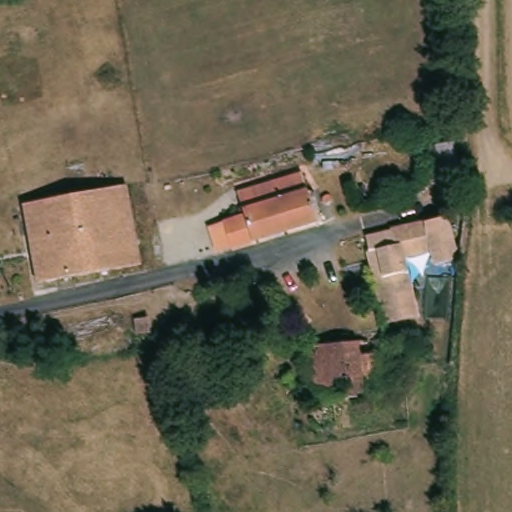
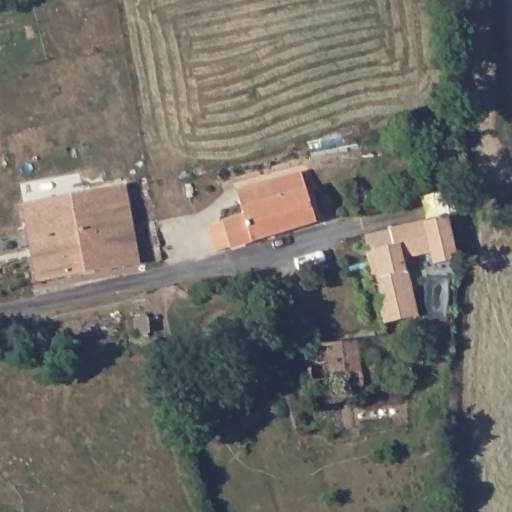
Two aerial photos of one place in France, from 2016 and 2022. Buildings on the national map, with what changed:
unchanged [(225,222),(245,216),(238,194),(303,173),(318,221),(315,222),(289,230),(242,246),(234,249),(233,248),(227,250),(218,253),(217,252),(210,227),(225,223),(225,222)]
unchanged [(27,203),(128,184),(142,263),(42,281),(27,203)]
unchanged [(372,244),(401,235),(440,222),(441,225),(454,222),(455,229),(464,264),(437,271),(433,258),(423,261),(421,264),(418,267),(414,268),(412,269),(409,269),(412,282),(413,284),(421,312),(422,321),(390,329),(371,245),(372,244)]
unchanged [(408,363),(408,385),(375,387),(375,383),(363,384),(362,390),(311,393),(307,344),(337,339),(420,333),(423,363),(408,363)]

